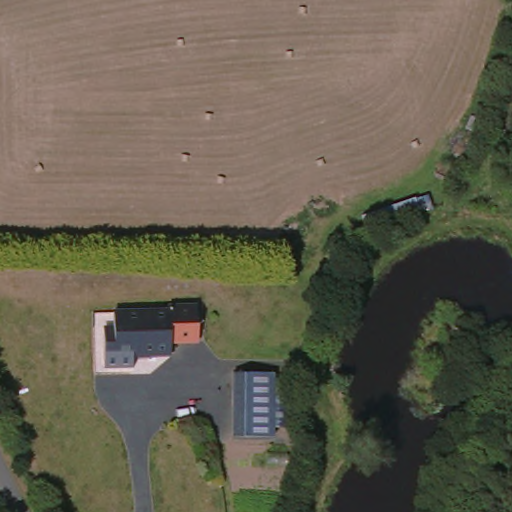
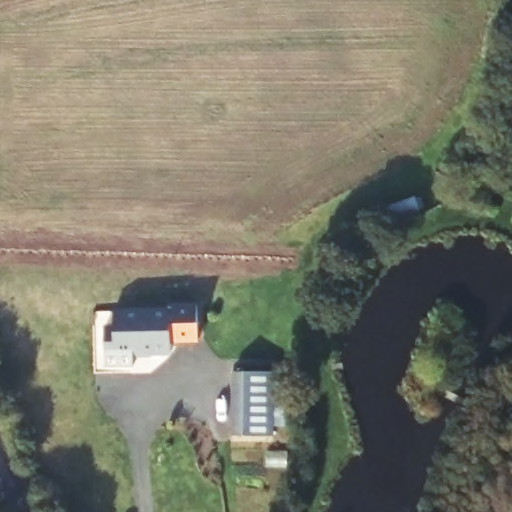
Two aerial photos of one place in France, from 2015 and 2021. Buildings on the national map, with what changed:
unchanged [(106,369),(107,353),(108,327),(117,328),(121,310),(175,314),(175,309),(202,310),(200,346),(172,344),(172,358),(152,357),(152,353),(138,353),(137,355),(137,371),(106,369)]
unchanged [(284,378),(278,441),(239,437),(244,375),(284,378)]

